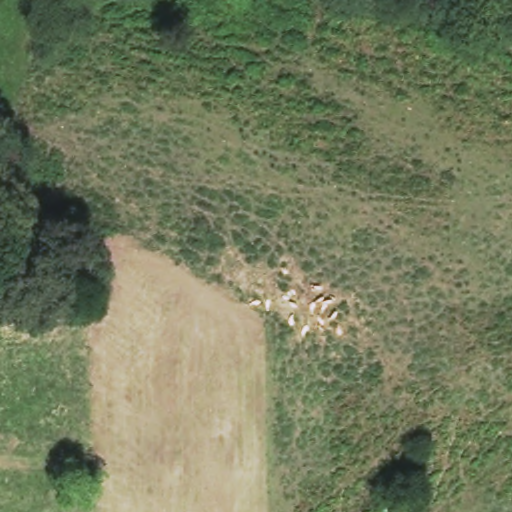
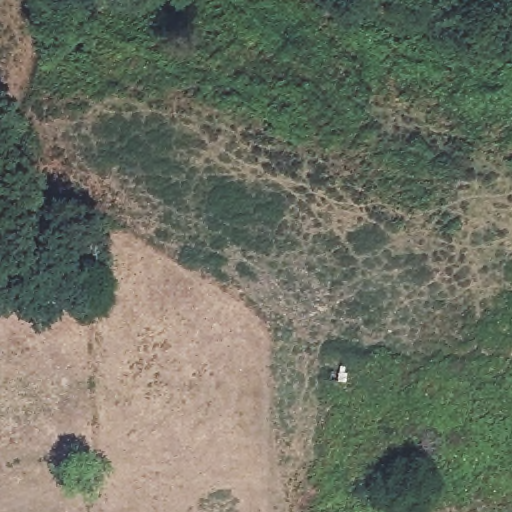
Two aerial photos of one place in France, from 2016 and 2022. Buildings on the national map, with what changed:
unchanged [(396,512),(388,512),(375,501),(398,474),(415,492),(396,512)]

